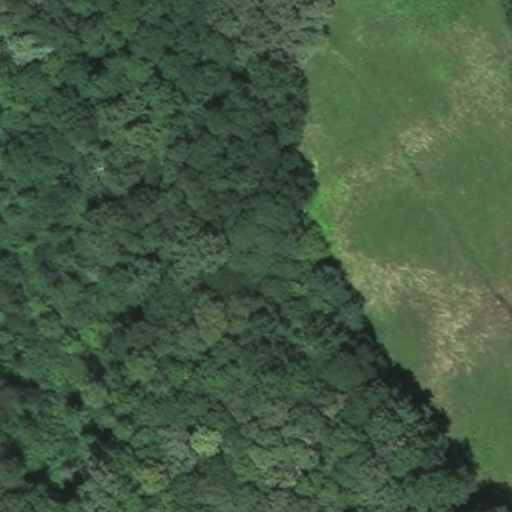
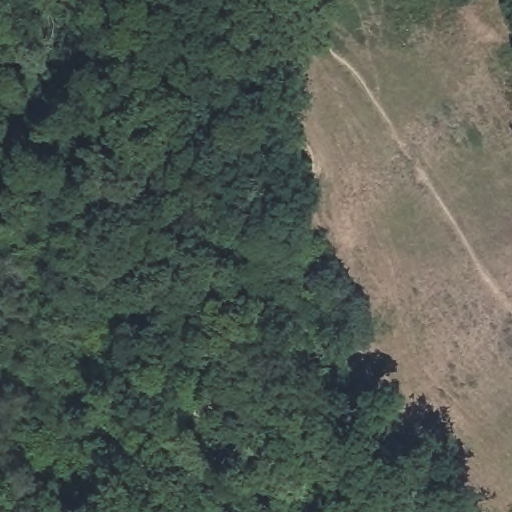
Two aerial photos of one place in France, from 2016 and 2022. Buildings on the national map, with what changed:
[]

